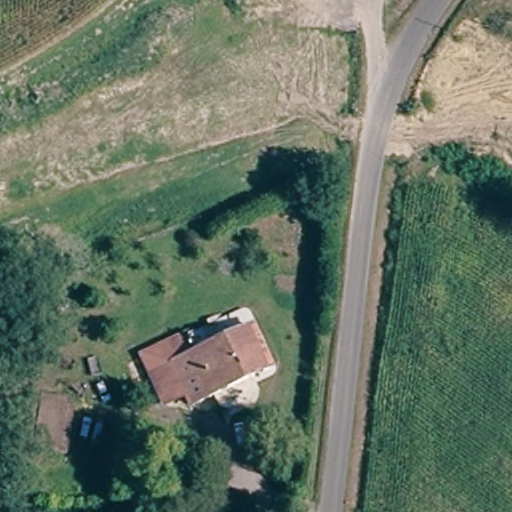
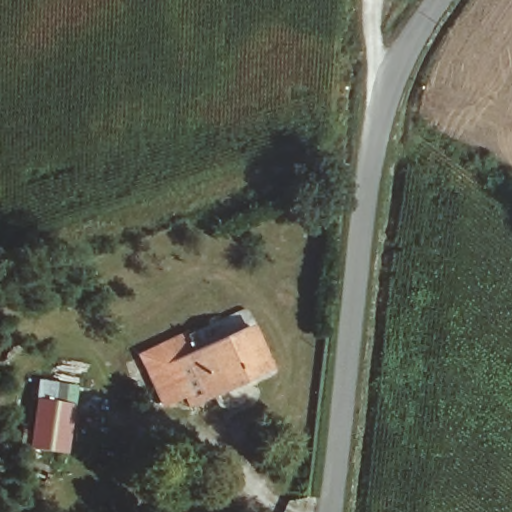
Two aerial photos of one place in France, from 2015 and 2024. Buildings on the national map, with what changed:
unchanged [(277,370),(201,406),(195,395),(173,405),(150,356),(195,335),(203,352),(257,327),(277,370)]
new [(39,378),(59,381),(49,452),(28,449),(39,378)]
new [(59,381),(80,385),(70,455),(49,452),(59,381)]

